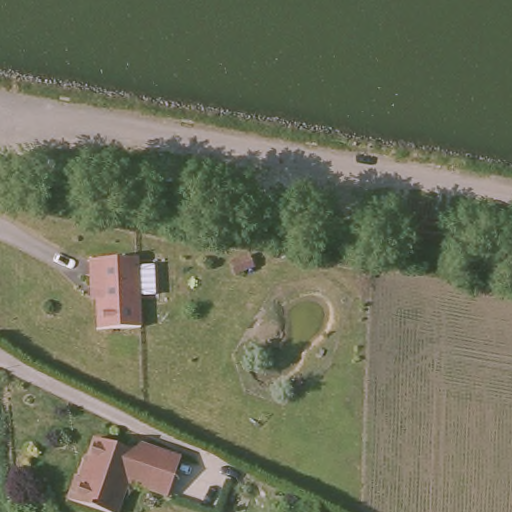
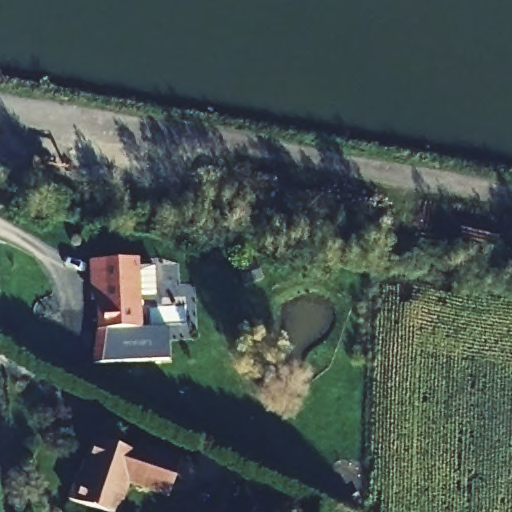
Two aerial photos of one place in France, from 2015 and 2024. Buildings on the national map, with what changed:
unchanged [(463,217),(464,207),(485,209),(484,220),(463,217)]
unchanged [(140,327),(96,328),(92,272),(87,272),(86,256),(136,254),(140,327)]
new [(140,327),(169,327),(169,359),(94,365),(96,328),(140,327)]
unchanged [(124,485),(115,512),(100,512),(63,500),(86,441),(125,453),(130,444),(172,456),(160,496),(124,485)]

